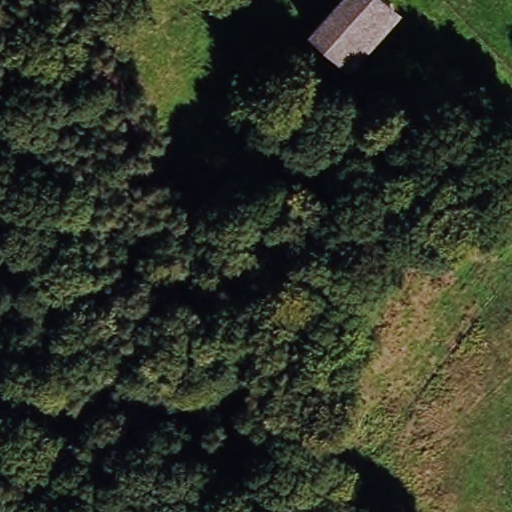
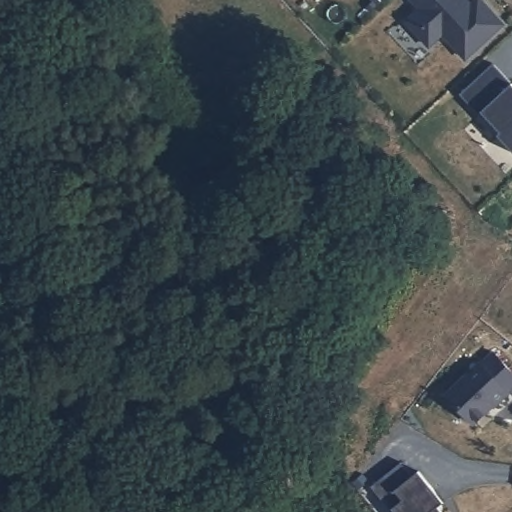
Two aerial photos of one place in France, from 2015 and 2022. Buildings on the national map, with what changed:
demolished [(350,67),(308,32),(336,0),(387,0),(399,11),(350,67)]
new [(411,0),(466,0),(466,1),(463,4),(468,9),(477,0),(480,0),(502,25),(465,59),(443,34),(430,46),(407,22),(420,10),(411,0)]
new [(512,84),(512,150),(498,135),(501,132),(482,112),(480,115),(460,94),(493,64),(512,84)]
new [(482,362),(493,351),(512,370),(512,391),(510,392),(511,393),(498,407),(497,406),(477,425),(447,393),(480,361),(482,362)]
new [(403,463),(415,477),(420,472),(446,503),(440,508),(443,512),(397,512),(387,500),(385,502),(373,487),(403,463)]

